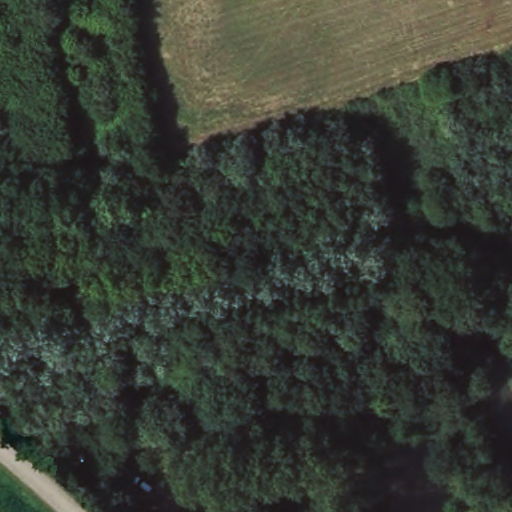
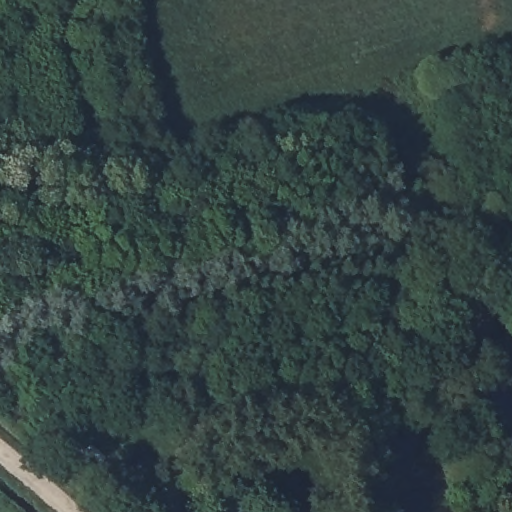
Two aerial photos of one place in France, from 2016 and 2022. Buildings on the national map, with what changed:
[]

